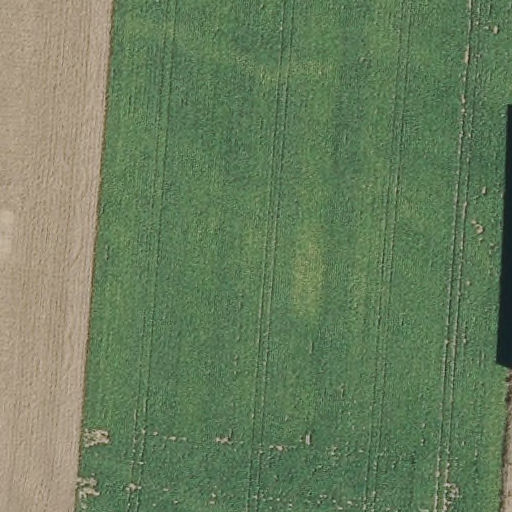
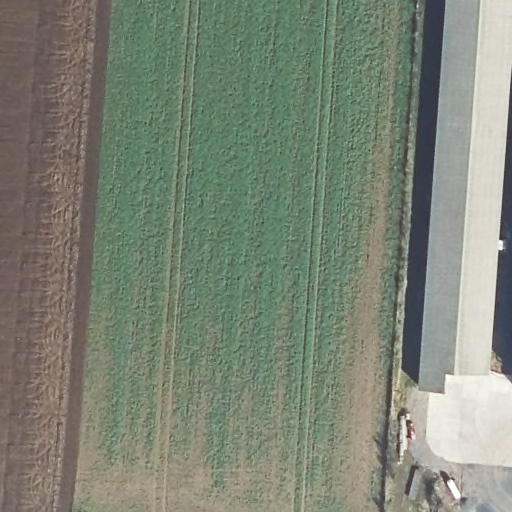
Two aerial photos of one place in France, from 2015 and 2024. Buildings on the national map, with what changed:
new [(445,0),(512,0),(512,50),(489,373),(446,370),(444,390),(418,389),(445,0)]

